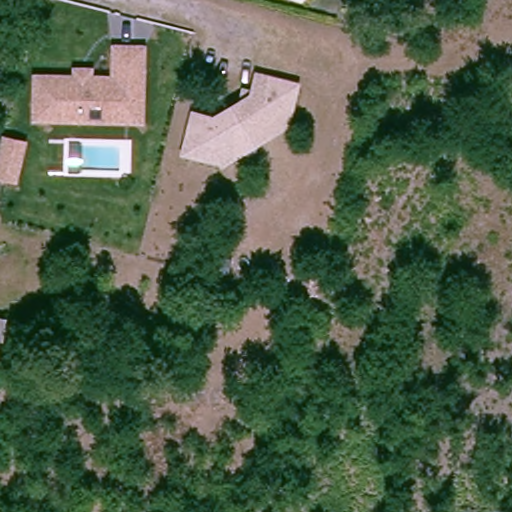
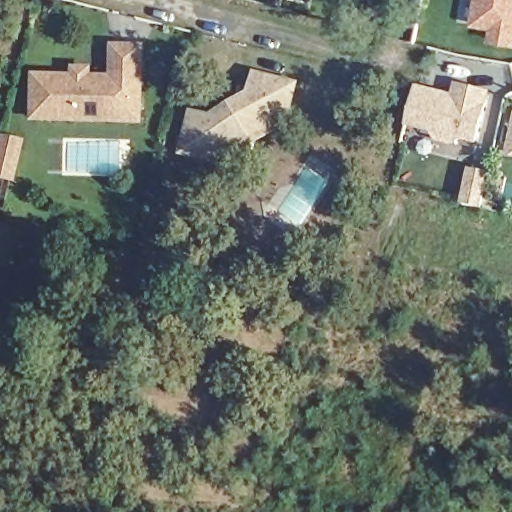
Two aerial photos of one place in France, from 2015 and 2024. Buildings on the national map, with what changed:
new [(490,29),(471,26),(475,0),(512,0),(512,46),(489,41),(490,29)]
unchanged [(122,113),(51,113),(50,70),(90,70),(90,65),(105,65),(105,70),(129,70),(129,38),(156,38),(157,94),(157,112),(122,113)]
unchanged [(181,160),(191,120),(211,125),(250,102),(254,82),(295,91),(285,131),(221,170),(181,160)]
new [(477,142),(460,139),(451,145),(436,141),(430,131),(406,125),(415,85),(452,93),(454,83),(490,90),(477,142)]
new [(506,150),(512,126),(512,157),(511,156),(506,150)]
unchanged [(18,133),(37,137),(27,175),(9,170),(10,168),(18,133)]
unchanged [(6,318),(2,350),(0,350),(0,318),(6,318)]

